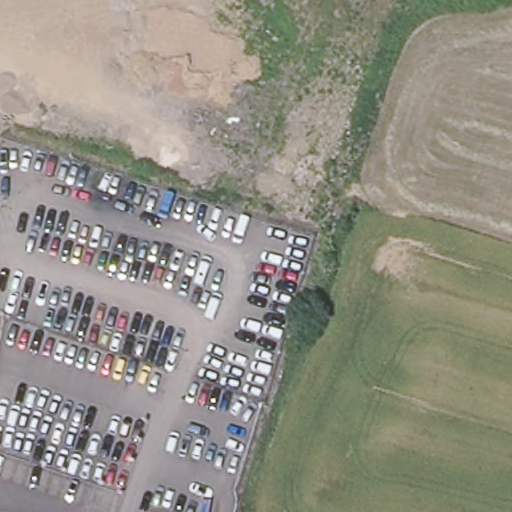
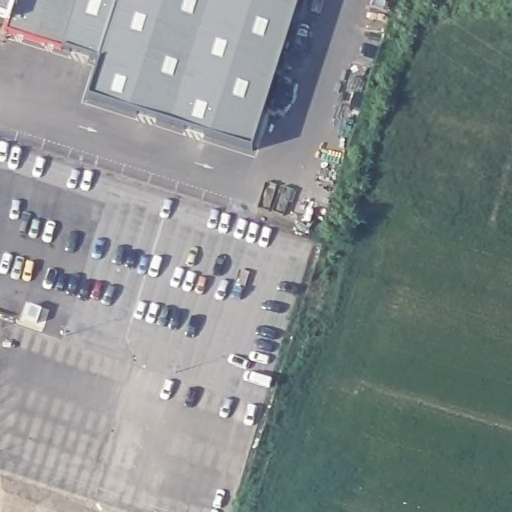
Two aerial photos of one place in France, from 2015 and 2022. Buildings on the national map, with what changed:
new [(89,95),(100,59),(64,47),(4,31),(10,20),(0,17),(0,0),(299,0),(252,148),(89,95)]

